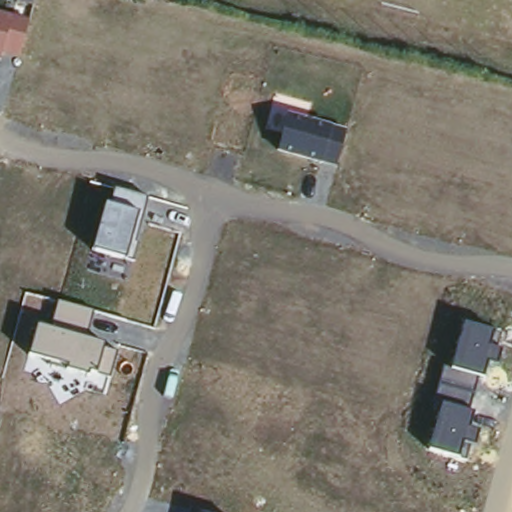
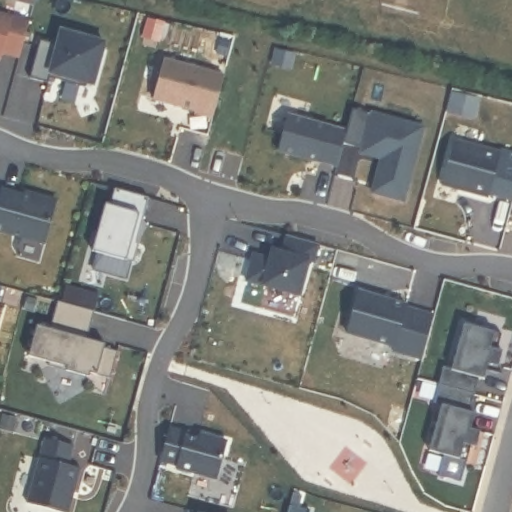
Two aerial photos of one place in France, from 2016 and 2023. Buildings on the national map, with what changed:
unchanged [(21,58),(6,54),(2,63),(0,62),(0,11),(31,20),(21,58)]
new [(50,80),(31,75),(41,37),(59,41),(63,27),(106,40),(99,64),(95,82),(88,80),(86,85),(62,78),(51,75),(50,80)]
new [(424,129),(404,202),(374,194),(383,160),(362,155),(363,150),(344,145),(353,110),(424,129)]
unchanged [(349,130),(337,171),(277,153),(290,113),(349,130)]
new [(501,154),(502,151),(512,154),(512,202),(490,196),(490,198),(443,186),(455,141),(501,154)]
unchanged [(148,198),(137,244),(141,245),(135,264),(93,251),(105,205),(111,206),(115,189),(148,198)]
new [(32,200),(34,197),(57,203),(45,245),(0,232),(0,197),(1,192),(32,200)]
new [(250,254),(267,259),(268,255),(275,251),(280,252),(284,235),(316,244),(311,262),(306,261),(297,295),(243,280),(250,254)]
new [(394,354),(395,349),(347,336),(359,295),(379,301),(390,304),(407,308),(406,311),(434,318),(423,361),(394,354)]
unchanged [(95,312),(88,341),(105,346),(104,349),(119,353),(113,377),(90,372),(88,377),(66,371),(66,367),(28,358),(37,327),(51,330),(59,302),(95,312)]
unchanged [(503,333),(499,350),(504,350),(499,366),(488,364),(484,378),(480,377),(470,412),(474,412),(469,428),(480,430),(470,462),(427,452),(441,403),(436,401),(444,366),(451,368),(463,323),(503,333)]
new [(188,432),(200,435),(200,433),(228,441),(218,478),(177,467),(178,464),(161,460),(170,427),(188,432)]
new [(75,444),(69,463),(82,467),(69,512),(67,512),(28,501),(46,436),(75,444)]
demolished [(483,485),(476,504),(407,484),(414,464),(483,485)]
new [(310,510),(310,512),(288,512),(290,505),(310,510)]

